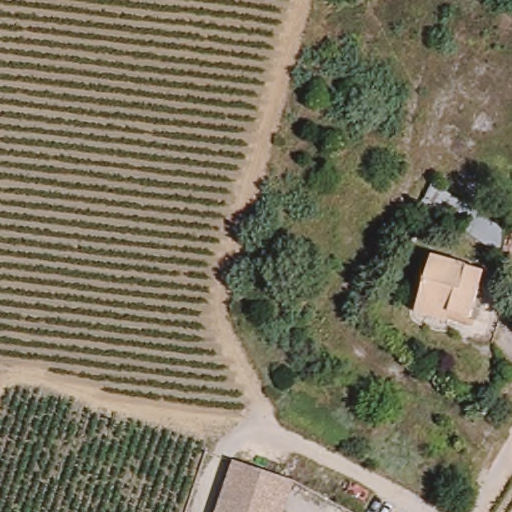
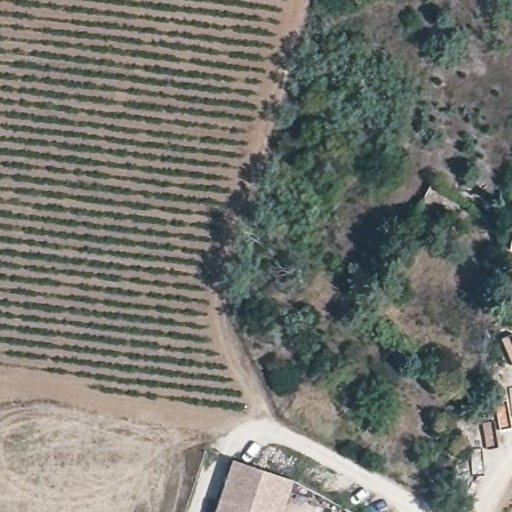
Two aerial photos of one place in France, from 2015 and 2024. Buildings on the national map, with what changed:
unchanged [(512,230),(512,236),(507,250),(420,204),(430,183),(512,230)]
demolished [(422,302),(423,301),(436,255),(488,270),(474,317),(456,312),(426,303),(422,302)]
unchanged [(233,463),(293,485),(283,512),(215,512),(233,463)]

